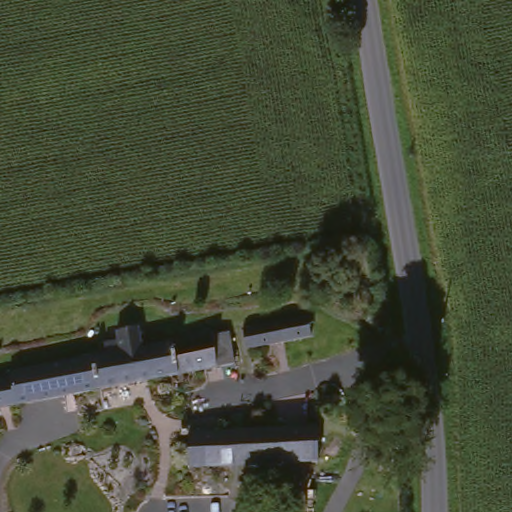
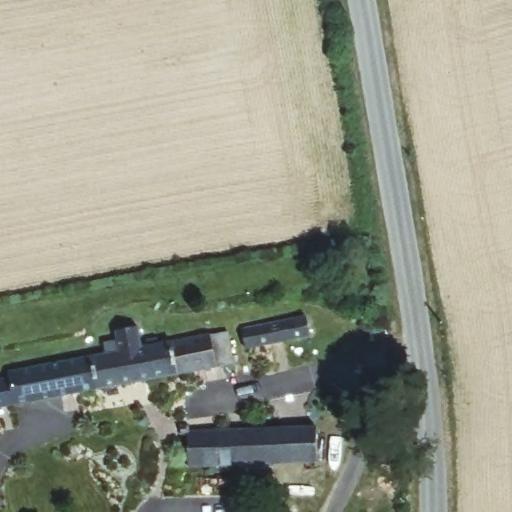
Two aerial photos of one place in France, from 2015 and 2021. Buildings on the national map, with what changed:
unchanged [(296,319),(300,338),(259,347),(254,326),(296,319)]
unchanged [(0,407),(0,376),(10,375),(11,371),(115,351),(111,329),(136,322),(141,346),(226,327),(231,359),(0,407)]
unchanged [(184,431),(216,430),(216,420),(231,420),(231,430),(316,428),(316,461),(184,466),(184,431)]

